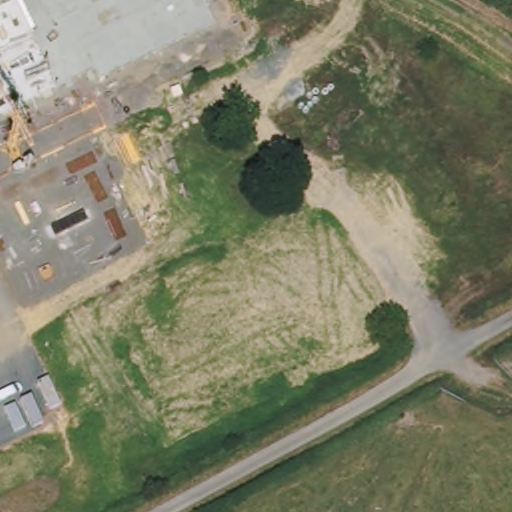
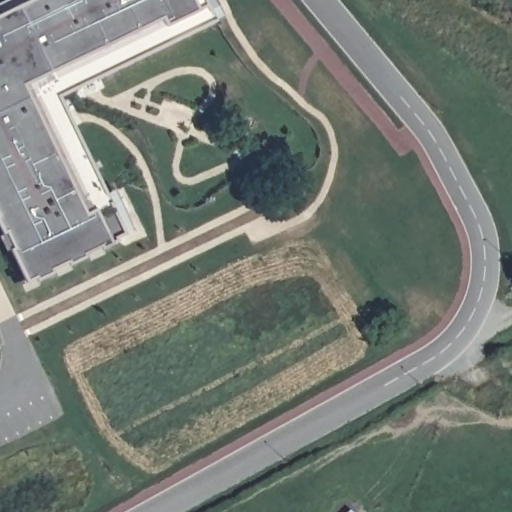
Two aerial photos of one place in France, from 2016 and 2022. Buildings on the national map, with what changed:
new [(0,14),(0,5),(9,0),(206,0),(216,20),(59,96),(127,234),(112,242),(27,281),(0,224),(0,15),(1,14),(0,14)]

